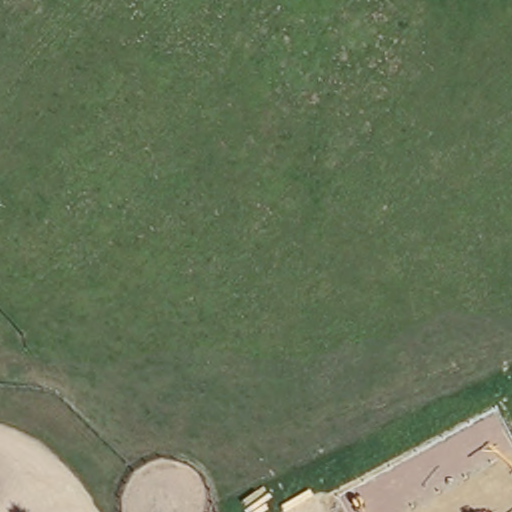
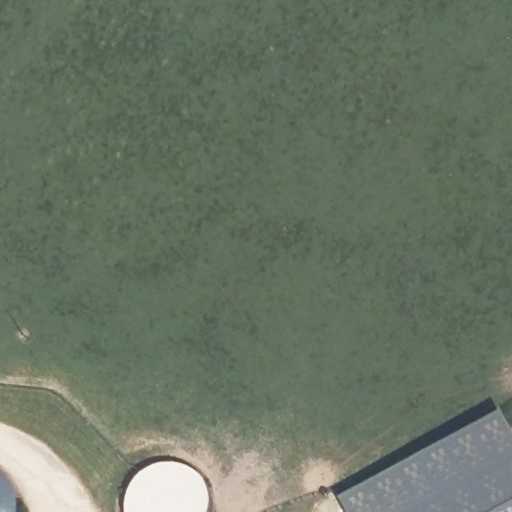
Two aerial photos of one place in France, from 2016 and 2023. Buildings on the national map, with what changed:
new [(497,412),(512,441),(512,512),(344,512),(338,499),(497,412)]
new [(16,512),(0,512),(0,508),(1,503),(0,497),(0,467),(4,469),(10,477),(14,485),(16,494),(18,503),(16,512)]

